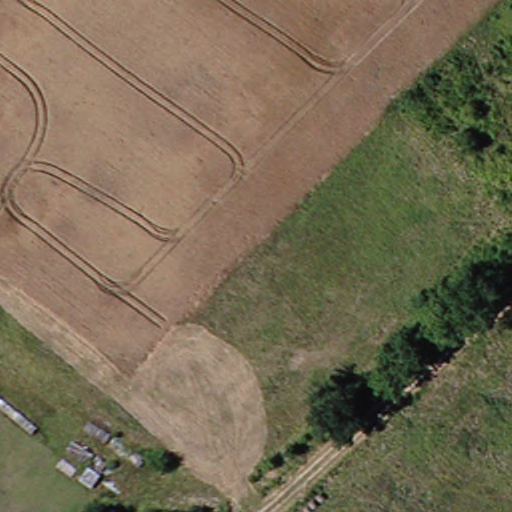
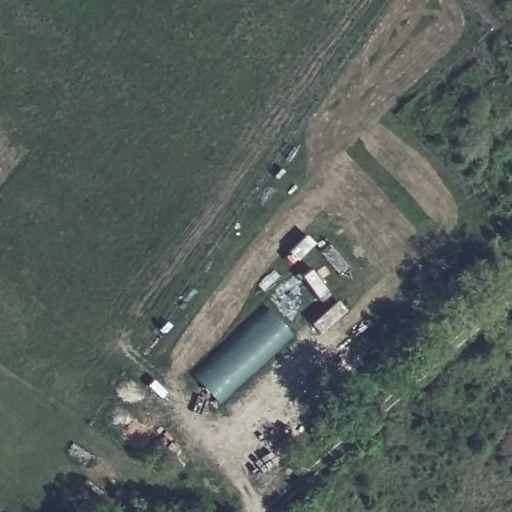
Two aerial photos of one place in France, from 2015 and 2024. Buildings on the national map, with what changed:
new [(270,311),(295,340),(220,406),(195,376),(270,311)]

